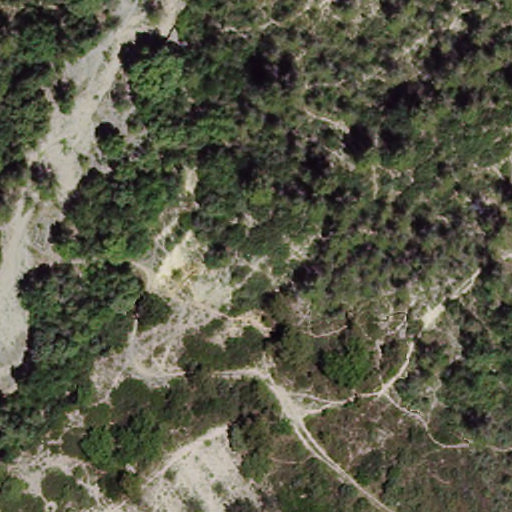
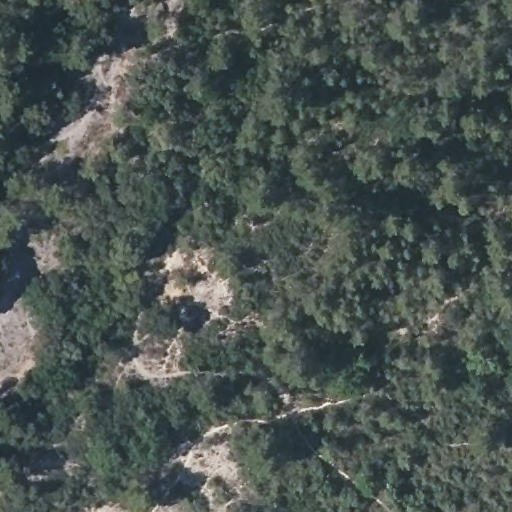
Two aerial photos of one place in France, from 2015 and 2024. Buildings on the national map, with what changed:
[]

